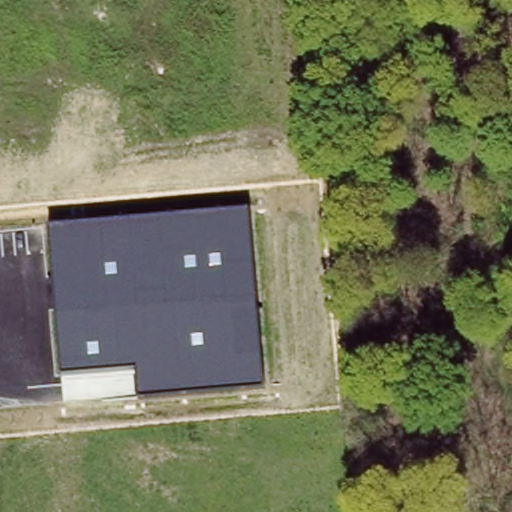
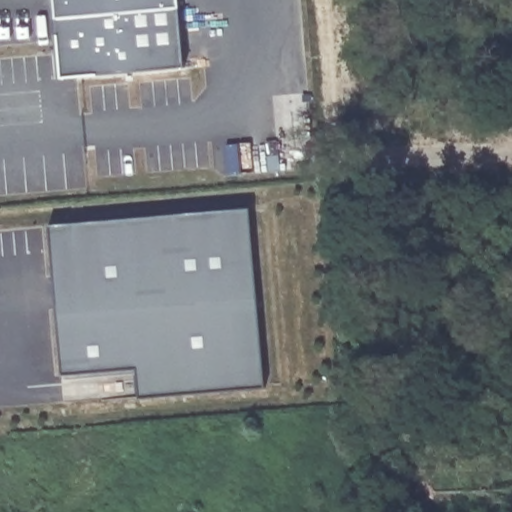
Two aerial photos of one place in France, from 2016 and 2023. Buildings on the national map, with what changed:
new [(183,61),(73,72),(62,63),(56,0),(177,0),(183,61)]
unchanged [(250,207),(266,386),(138,398),(137,368),(62,375),(51,226),(250,207)]

